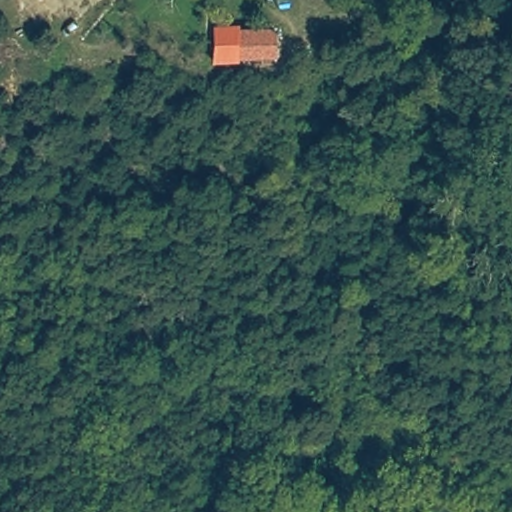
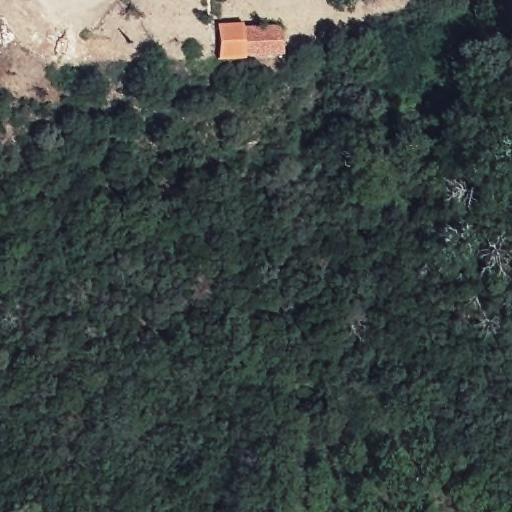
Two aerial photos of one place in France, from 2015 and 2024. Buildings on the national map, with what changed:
unchanged [(220,21),(245,21),(244,29),(286,28),(287,56),(222,59),(220,21)]

